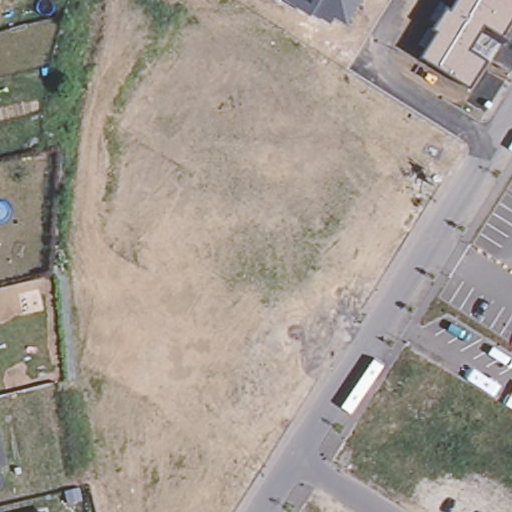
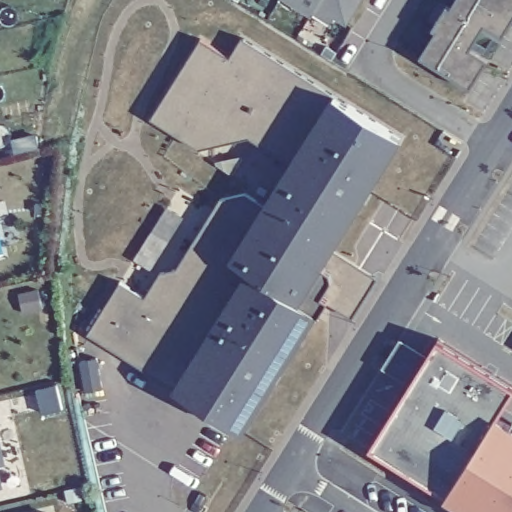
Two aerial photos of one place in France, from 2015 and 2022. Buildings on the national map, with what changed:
unchanged [(334,17),(331,24),(312,14),(310,15),(286,0),(362,0),(347,25),(334,17)]
unchanged [(439,31),(435,29),(447,9),(452,11),(459,0),(512,0),(512,21),(502,36),(484,25),(470,49),(488,60),(470,86),(422,56),(439,31)]
new [(200,39),(230,57),(242,38),(334,96),(404,139),(335,251),(377,278),(355,318),(327,301),(320,314),(245,432),(175,388),(87,332),(120,281),(145,297),(162,272),(178,268),(221,199),(245,192),(265,205),(290,161),(250,137),(199,149),(152,119),(200,39)]
new [(512,387),(512,393),(497,416),(511,425),(512,424),(512,512),(456,512),(454,511),(460,502),(447,495),(374,448),(440,341),(512,387)]
demolished [(410,407),(422,378),(457,393),(442,420),(410,407)]
unchanged [(4,463),(0,464),(0,445),(4,463)]
unchanged [(2,485),(0,486),(0,476),(2,485)]

